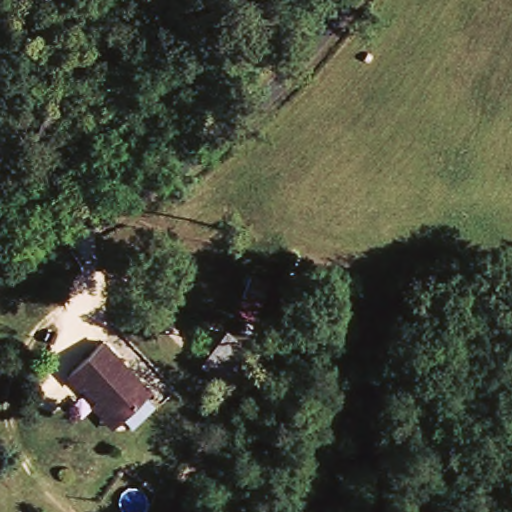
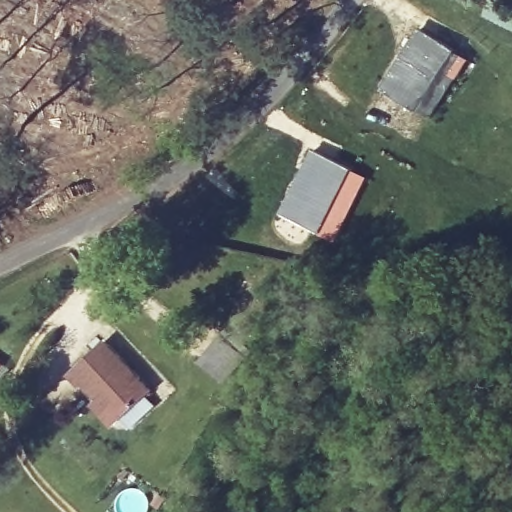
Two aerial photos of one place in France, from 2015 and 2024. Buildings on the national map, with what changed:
new [(420,25),(468,58),(435,116),(385,87),(420,25)]
new [(313,148),(367,177),(336,242),(282,212),(313,148)]
unchanged [(198,363),(221,333),(252,352),(230,382),(198,363)]
unchanged [(92,412),(100,403),(86,389),(81,394),(67,380),(103,346),(152,396),(121,426),(114,434),(92,412)]

